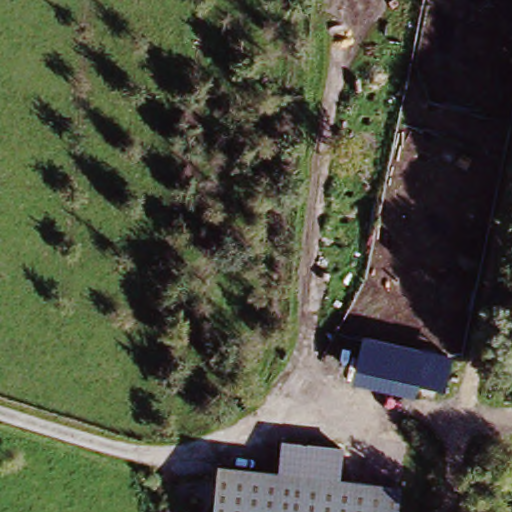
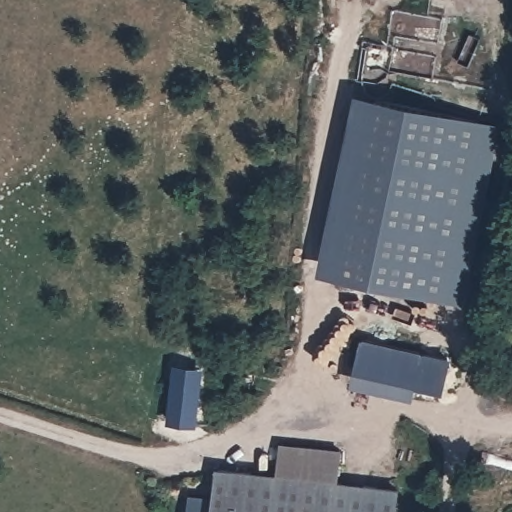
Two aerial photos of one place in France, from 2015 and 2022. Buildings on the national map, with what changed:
new [(501,122),(462,302),(320,272),(356,95),(501,122)]
unchanged [(360,337),(453,356),(448,392),(417,383),(414,399),(351,383),(360,337)]
unchanged [(265,477),(268,452),(278,453),(279,442),(342,449),(339,485),(265,477)]
unchanged [(218,472),(398,491),(397,512),(216,512),(218,472)]

